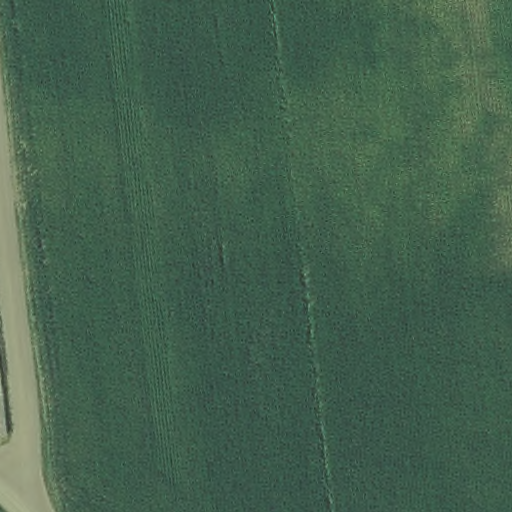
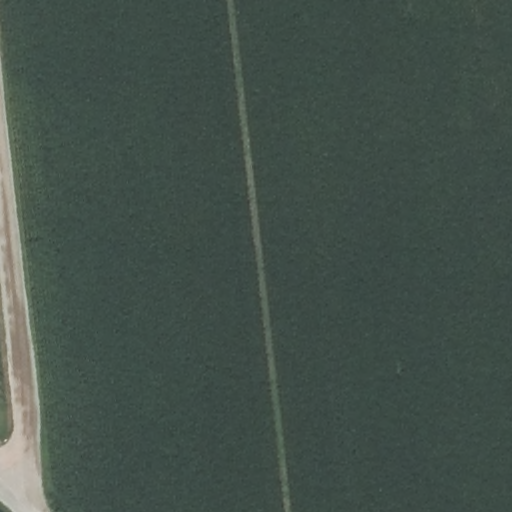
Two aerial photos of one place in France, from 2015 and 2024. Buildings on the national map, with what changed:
unchanged [(0,434),(0,311),(18,432),(0,434)]

